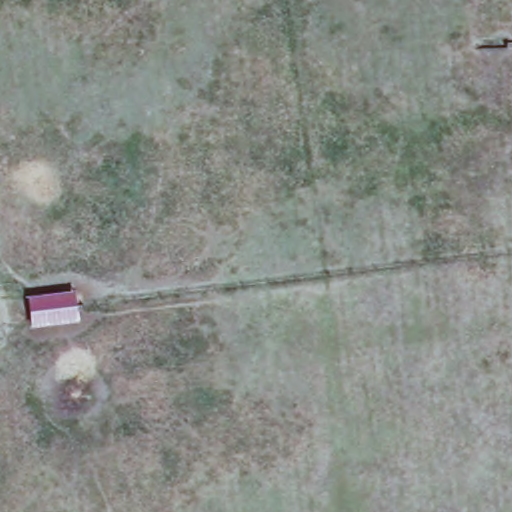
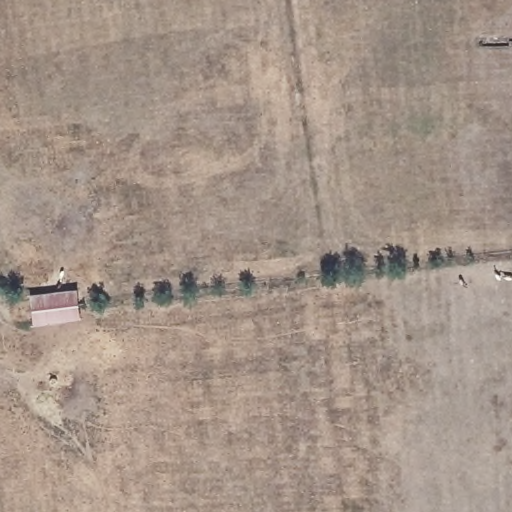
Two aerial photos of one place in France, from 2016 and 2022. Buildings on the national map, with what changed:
unchanged [(80,317),(34,323),(29,294),(77,287),(80,317)]

